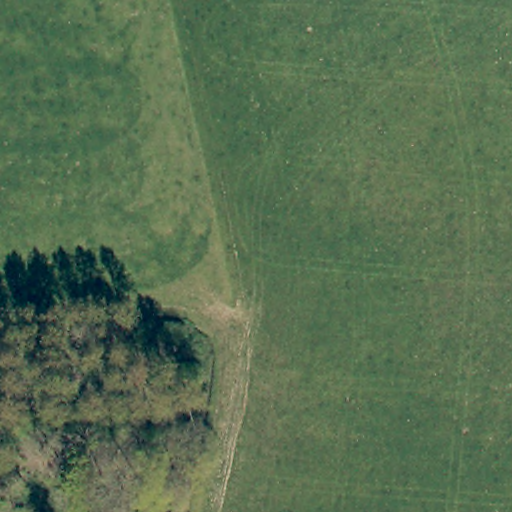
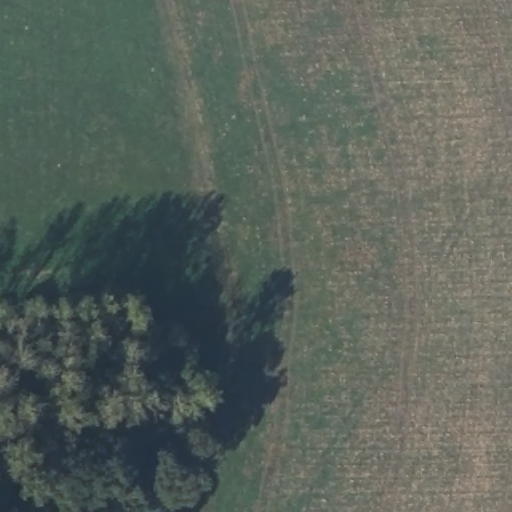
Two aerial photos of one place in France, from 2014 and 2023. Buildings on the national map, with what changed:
[]

